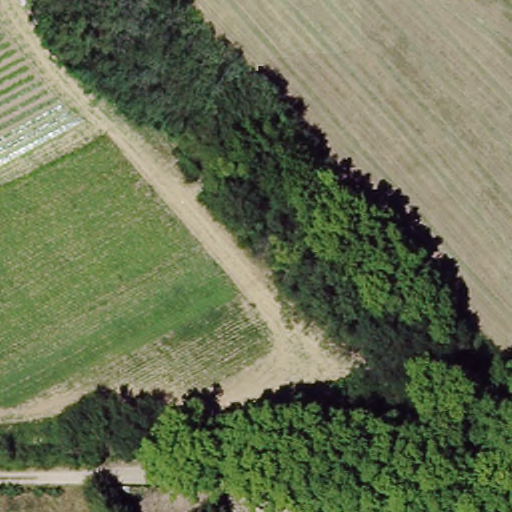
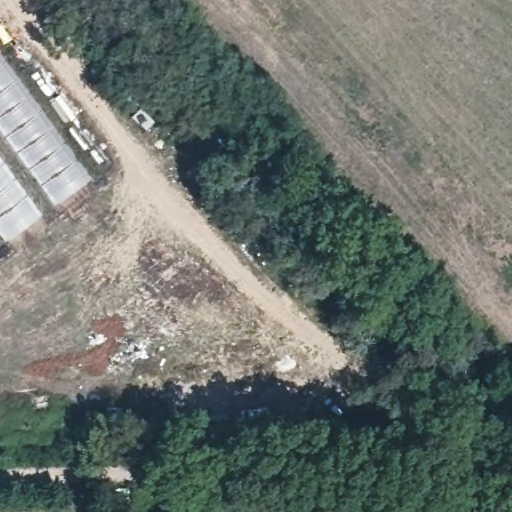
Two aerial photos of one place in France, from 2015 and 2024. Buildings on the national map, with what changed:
new [(0,248),(0,52),(93,179),(0,248)]
unchanged [(301,471),(302,450),(334,451),(334,473),(301,471)]

